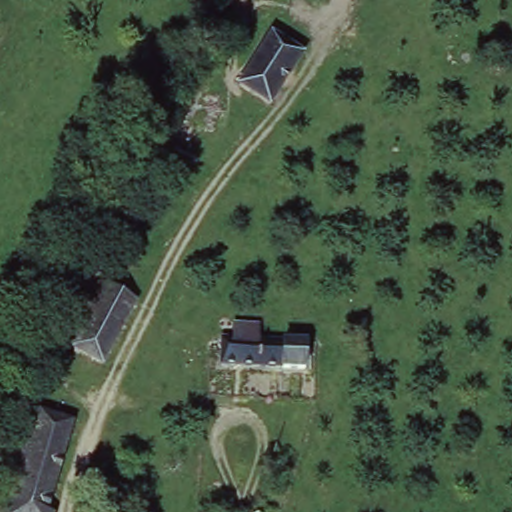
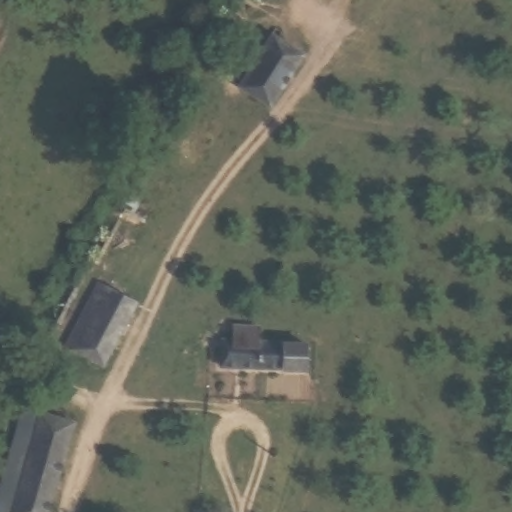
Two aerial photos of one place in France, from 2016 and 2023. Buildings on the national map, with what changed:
unchanged [(307,48),(275,99),(246,80),(277,29),(307,48)]
unchanged [(108,358),(81,342),(71,338),(102,278),(112,283),(139,297),(108,358)]
unchanged [(237,334),(239,318),(263,320),(262,336),(310,336),(309,363),(225,361),(226,333),(237,334)]
unchanged [(10,512),(0,509),(0,498),(28,401),(46,407),(15,512),(10,512)]
unchanged [(52,507),(58,507),(57,512),(15,512),(46,407),(79,415),(52,507)]

